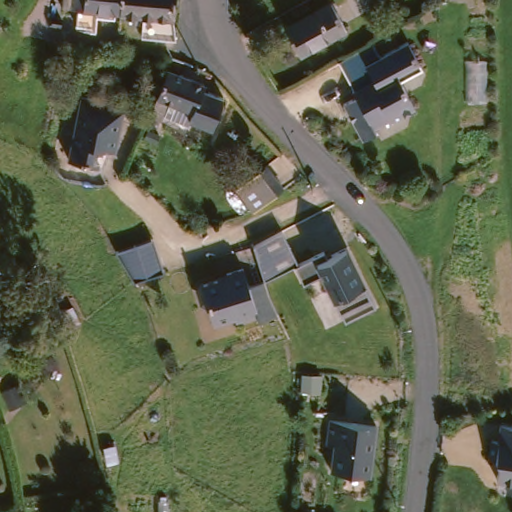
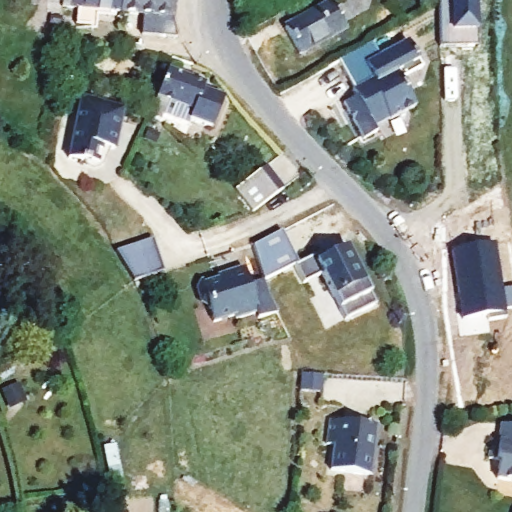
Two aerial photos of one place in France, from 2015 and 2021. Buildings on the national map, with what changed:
unchanged [(94,13),(92,27),(74,27),(75,12),(61,11),(59,26),(47,25),(48,6),(60,6),(61,0),(117,0),(115,14),(94,13)]
unchanged [(168,15),(172,40),(138,39),(139,16),(115,14),(117,0),(171,0),(168,15)]
unchanged [(362,7),(359,0),(375,0),(375,1),(362,7)]
unchanged [(296,54),(284,29),(329,5),(342,29),(296,54)]
unchanged [(399,69),(380,79),(378,75),(356,87),(360,94),(355,96),(338,61),(371,42),(381,57),(406,42),(421,69),(404,78),(399,69)]
unchanged [(418,105),(393,118),(392,117),(377,125),(379,129),(365,137),(346,101),(360,94),(356,87),(378,75),(380,79),(399,69),(418,105)]
unchanged [(199,91),(216,97),(210,123),(191,119),(192,111),(166,104),(163,115),(151,114),(166,74),(201,84),(199,91)]
unchanged [(107,96),(118,97),(111,147),(99,145),(99,146),(97,163),(67,158),(69,139),(76,94),(107,96)]
unchanged [(254,214),(236,190),(264,171),(282,194),(254,214)]
unchanged [(333,313),(316,274),(299,281),(293,268),(266,280),(249,246),(281,229),(298,259),(342,238),(371,302),(333,313)]
unchanged [(152,239),(162,272),(131,281),(128,274),(114,250),(152,239)]
new [(501,291),(512,290),(512,309),(504,310),(505,319),(488,321),(487,316),(462,320),(452,250),(494,244),(501,291)]
unchanged [(265,305),(266,307),(267,311),(251,316),(249,311),(229,318),(228,314),(207,322),(201,304),(198,293),(195,286),(194,284),(220,275),(218,271),(235,266),(241,283),(256,278),(265,305)]
unchanged [(207,322),(201,304),(195,301),(191,289),(194,284),(195,286),(198,293),(207,322)]
unchanged [(374,428),(367,478),(341,475),(327,473),(331,447),(323,447),(326,422),(347,425),(374,428)]
unchanged [(512,484),(505,483),(508,468),(505,464),(498,463),(501,444),(508,445),(510,428),(512,429),(512,484)]

